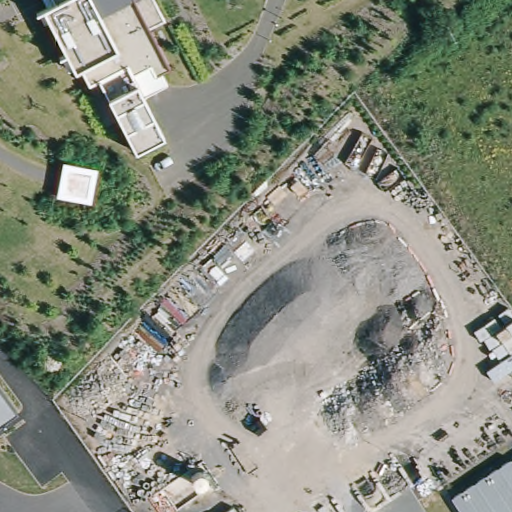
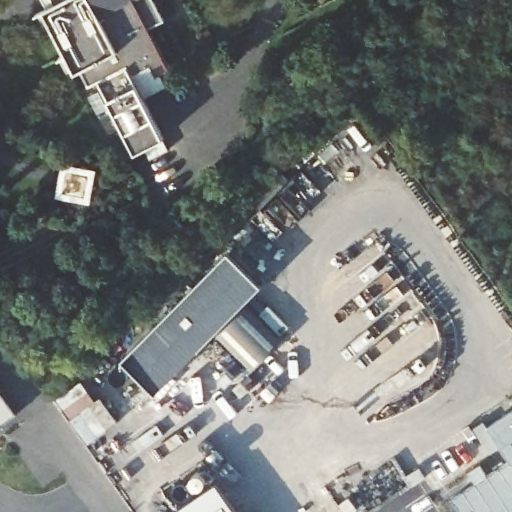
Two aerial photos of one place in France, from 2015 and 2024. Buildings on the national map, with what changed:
unchanged [(165,16),(147,28),(168,70),(166,71),(170,78),(140,93),(164,140),(135,155),(98,83),(90,87),(82,71),(74,73),(43,12),(48,7),(44,0),(156,0),(165,16)]
new [(230,322),(161,392),(157,387),(154,389),(125,360),(231,252),(267,288),(244,312),(273,341),(264,351),(267,358),(257,367),(231,341),(239,332),(230,322)]
new [(90,444),(56,400),(81,381),(96,401),(100,398),(118,422),(90,444)]
unchanged [(16,408),(0,420),(0,387),(16,408)]
unchanged [(512,512),(459,512),(453,503),(512,462),(512,512)]
new [(237,512),(175,512),(217,483),(237,512)]

